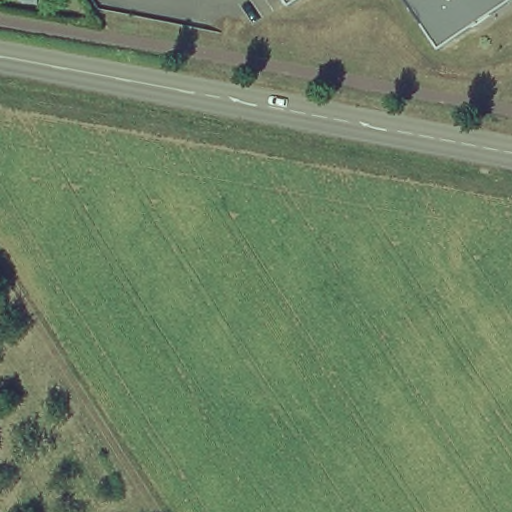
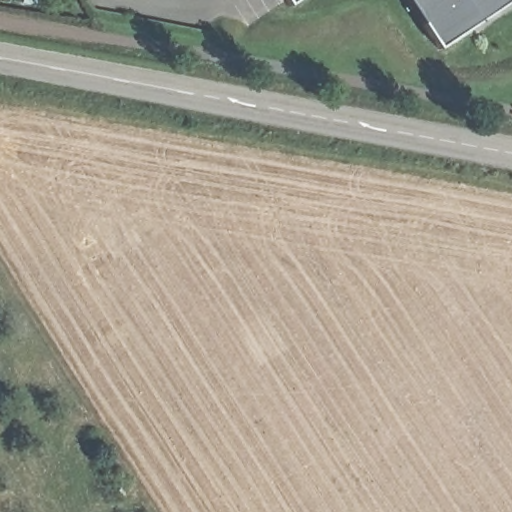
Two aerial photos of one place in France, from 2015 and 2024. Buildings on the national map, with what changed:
unchanged [(290,0),(305,0),(295,7),(290,0)]
unchanged [(411,0),(512,0),(512,5),(445,50),(411,0)]

